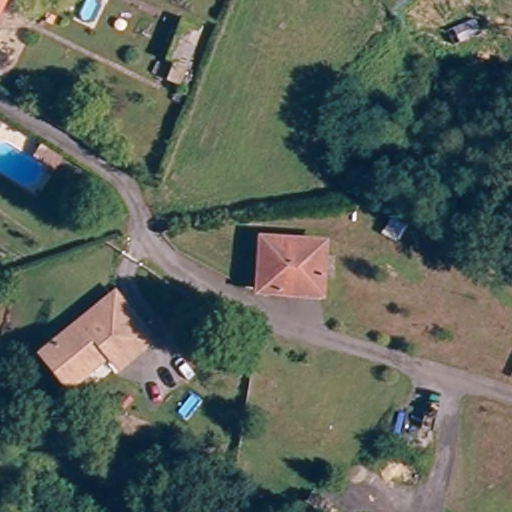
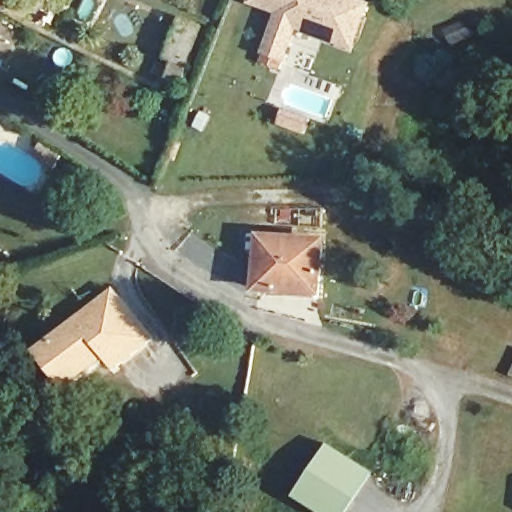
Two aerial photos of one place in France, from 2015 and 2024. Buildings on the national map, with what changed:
unchanged [(0,14),(0,0),(7,0),(1,12),(0,14)]
new [(283,16),(267,57),(251,51),(255,42),(251,40),(266,0),(265,0),(355,0),(341,38),(283,16)]
unchanged [(175,90),(157,85),(162,70),(154,64),(170,25),(195,34),(175,90)]
unchanged [(331,250),(316,302),(254,284),(269,232),(331,250)]
unchanged [(46,354),(57,345),(117,293),(155,338),(123,366),(112,353),(102,362),(91,372),(73,387),(46,354)]
new [(328,443),(374,471),(349,512),(316,512),(293,497),(328,443)]

